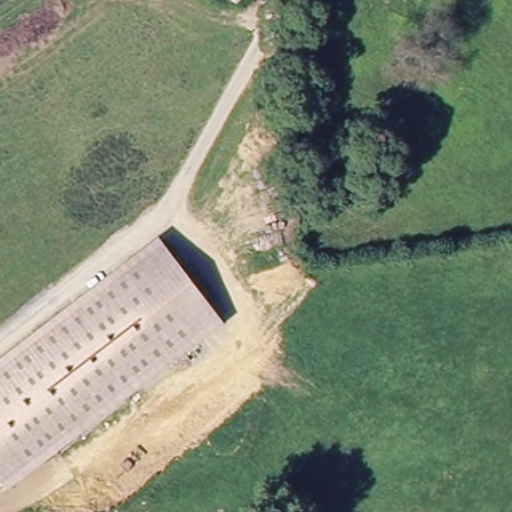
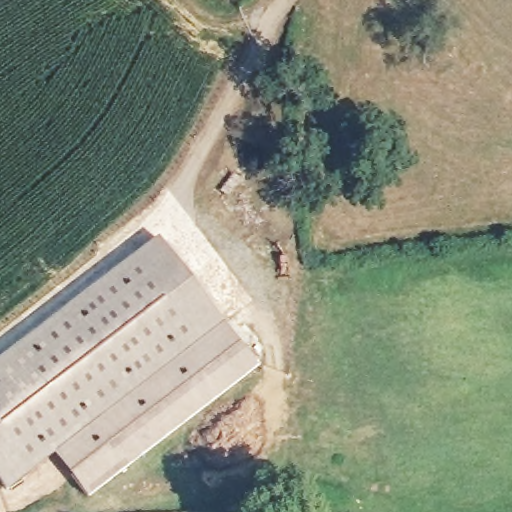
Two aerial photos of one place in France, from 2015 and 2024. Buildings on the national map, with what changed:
unchanged [(224,322),(54,453),(6,491),(0,483),(0,360),(160,237),(224,322)]
new [(224,322),(256,366),(89,495),(54,453),(224,322)]

